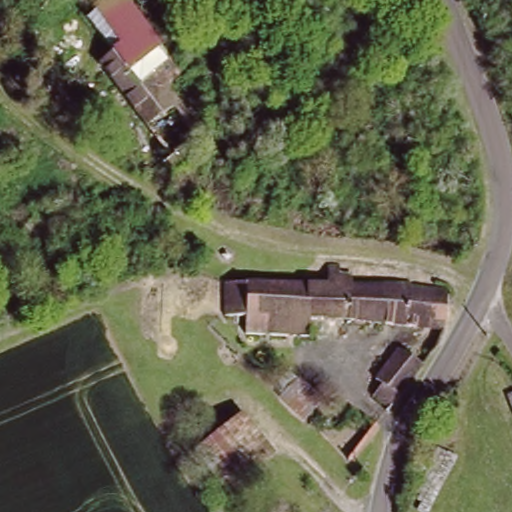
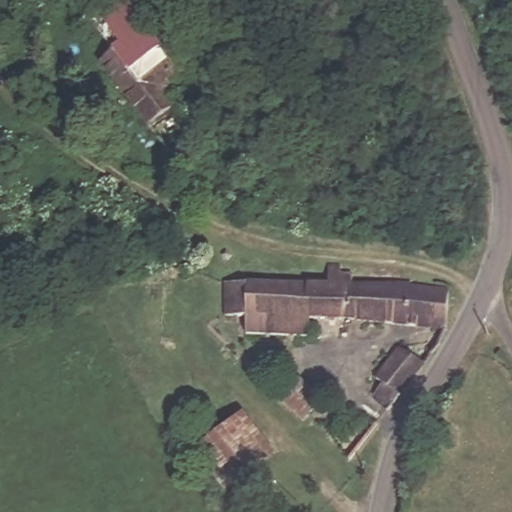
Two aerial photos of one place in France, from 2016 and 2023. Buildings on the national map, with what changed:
unchanged [(185,81),(172,92),(210,137),(179,163),(113,85),(115,84),(97,62),(110,52),(87,24),(109,0),(118,0),(185,81)]
unchanged [(358,287),(357,321),(310,320),(309,281),(330,281),(330,262),(343,261),(343,280),(358,280),(358,287)]
unchanged [(310,320),(310,332),(245,332),(245,320),(226,321),(226,312),(226,280),(309,281),(310,320)]
unchanged [(412,285),(412,291),(455,291),(450,322),(357,321),(358,287),(412,285)]
unchanged [(393,413),(374,398),(380,390),(372,382),(395,347),(423,366),(393,413)]
unchanged [(354,458),(327,437),(351,407),(378,422),(354,458)]
unchanged [(228,495),(190,457),(246,415),(278,453),(228,495)]

